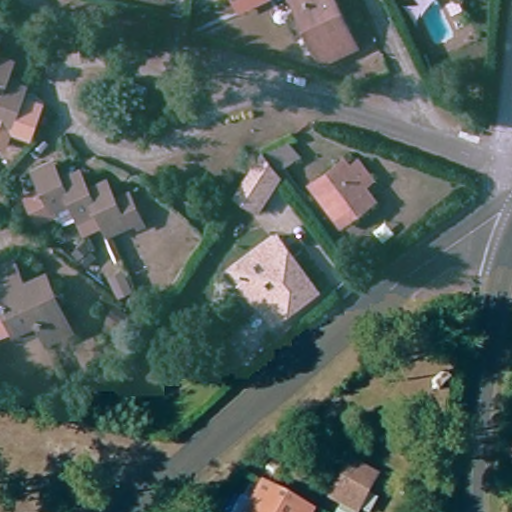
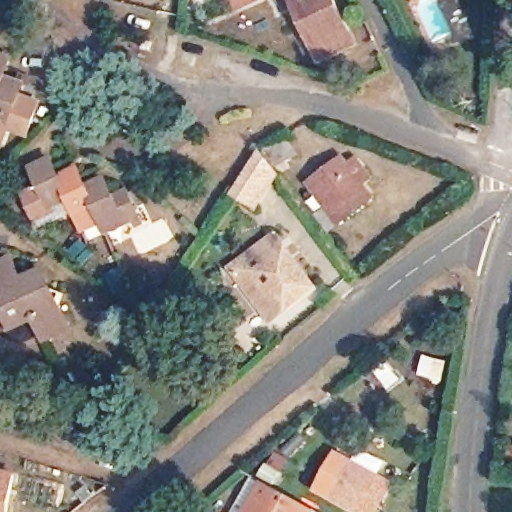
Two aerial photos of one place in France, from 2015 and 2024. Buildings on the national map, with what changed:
unchanged [(313,50),(295,9),(291,0),(335,0),(351,34),(358,51),(321,69),(313,50)]
unchanged [(15,132),(0,127),(0,58),(12,62),(5,85),(26,91),(15,132)]
unchanged [(276,172),(281,179),(260,216),(234,199),(258,154),(286,144),(301,159),(276,172)]
unchanged [(133,218),(124,222),(105,231),(101,222),(82,231),(67,198),(49,206),(52,212),(36,220),(24,195),(39,188),(31,170),(45,163),(51,160),(53,166),(59,177),(72,172),(77,170),(81,176),(86,187),(99,181),(105,179),(107,185),(112,196),(126,190),(132,204),(141,222),(136,225),(133,218)]
unchanged [(342,233),(332,221),(306,191),(336,165),(343,172),(356,162),(366,177),(354,189),(362,197),(371,209),(342,233)]
unchanged [(245,293),(242,290),(230,276),(277,241),(284,250),(318,290),(292,311),(273,326),(245,293)]
unchanged [(40,329),(17,340),(2,315),(0,314),(0,286),(11,280),(23,295),(34,296),(47,288),(56,301),(67,303),(64,316),(74,335),(50,347),(40,329)]
unchanged [(330,500),(339,482),(347,467),(374,481),(358,512),(352,512),(330,500)]
new [(17,472),(11,512),(0,512),(0,470),(17,472)]
unchanged [(264,478),(317,512),(247,512),(264,478)]

